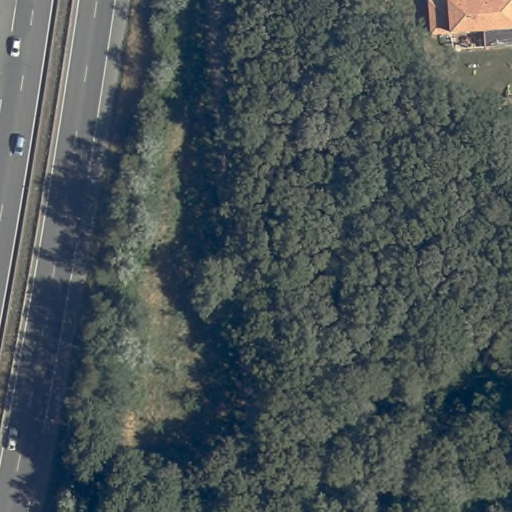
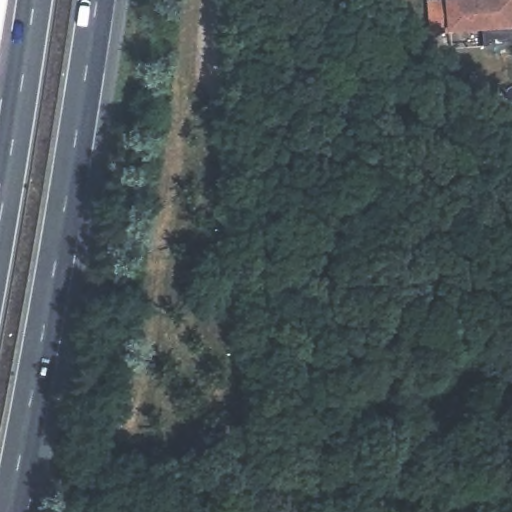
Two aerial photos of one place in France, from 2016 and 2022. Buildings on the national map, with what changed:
unchanged [(485,31),(434,35),(433,15),(449,14),(448,0),(512,0),(512,45),(485,47),(485,31)]

